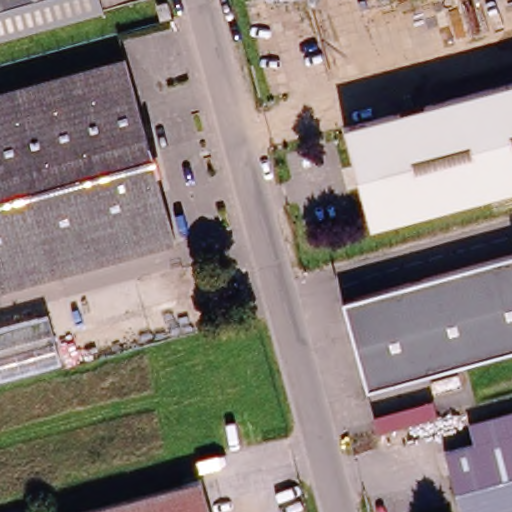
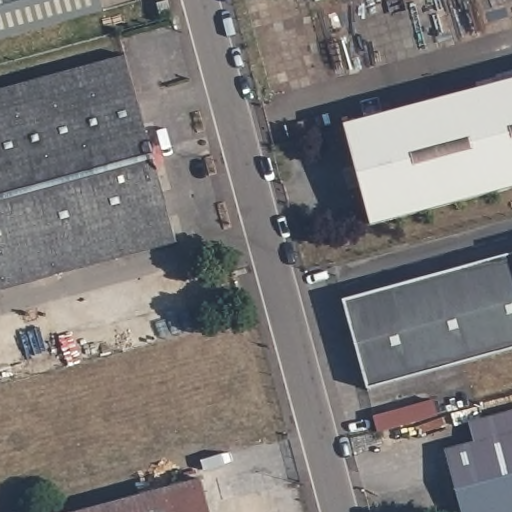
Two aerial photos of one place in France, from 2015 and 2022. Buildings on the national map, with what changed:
unchanged [(0,35),(0,0),(96,0),(98,9),(0,35)]
unchanged [(174,7),(160,11),(156,0),(172,0),(174,7)]
unchanged [(174,242),(0,288),(0,85),(120,54),(174,242)]
unchanged [(336,130),(512,81),(512,189),(364,227),(336,130)]
unchanged [(512,344),(372,381),(347,295),(512,251),(512,344)]
demolished [(48,313),(60,360),(0,376),(0,326),(48,313)]
unchanged [(437,397),(441,412),(404,421),(381,427),(377,413),(437,397)]
unchanged [(512,409),(512,430),(472,440),(466,420),(512,409)]
unchanged [(472,440),(512,430),(512,512),(460,512),(442,448),(472,440)]
unchanged [(74,512),(195,479),(205,512),(74,512)]

